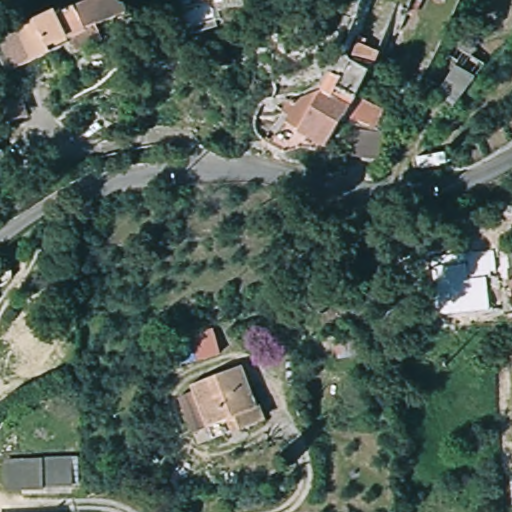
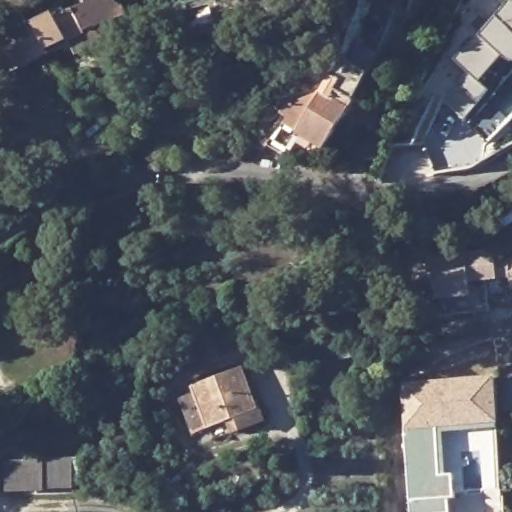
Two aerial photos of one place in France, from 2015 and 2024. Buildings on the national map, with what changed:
unchanged [(94,26),(100,40),(71,54),(67,44),(7,71),(0,59),(0,38),(51,12),(53,16),(84,2),(82,0),(102,0),(110,19),(94,26)]
unchanged [(424,0),(417,15),(409,9),(412,0),(424,0)]
new [(510,60),(512,62),(512,72),(494,94),(486,89),(477,100),(463,116),(442,98),(456,82),(467,71),(456,60),(512,0),(512,60),(510,60)]
unchanged [(323,141),(308,143),(299,140),(281,146),(267,138),(286,111),(278,106),(286,96),(319,86),(328,67),(339,73),(358,38),(375,46),(364,63),(366,64),(354,88),(343,111),(341,110),(337,117),(323,141)]
demolished [(473,53),(489,63),(481,70),(477,76),(458,104),(440,93),(443,87),(461,59),(452,54),(450,54),(456,43),(473,53)]
unchanged [(356,90),(383,102),(373,122),(355,115),(353,119),(347,117),(350,113),(347,111),(356,90)]
unchanged [(22,101),(26,115),(7,120),(3,106),(22,101)]
unchanged [(344,130),(360,136),(352,158),(328,149),(336,127),(344,130)]
new [(509,277),(495,279),(469,282),(469,294),(436,296),(434,255),(465,253),(493,249),(494,259),(507,257),(509,277)]
unchanged [(186,340),(193,361),(183,364),(184,367),(171,372),(170,368),(167,369),(161,348),(186,340)]
unchanged [(243,367),(258,410),(262,408),(267,421),(233,434),(228,421),(194,434),(183,405),(198,400),(193,386),(243,367)]
new [(499,428),(444,432),(446,474),(455,474),(456,498),(450,499),(451,512),(412,512),(406,430),(402,384),(494,376),(499,420),(499,428)]
unchanged [(78,458),(78,487),(52,487),(51,489),(14,490),(13,459),(78,458)]

